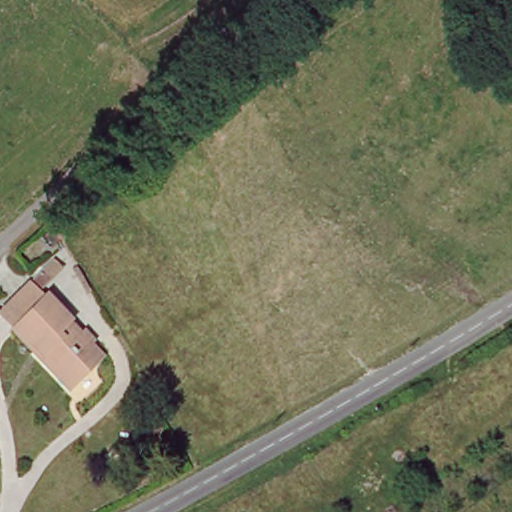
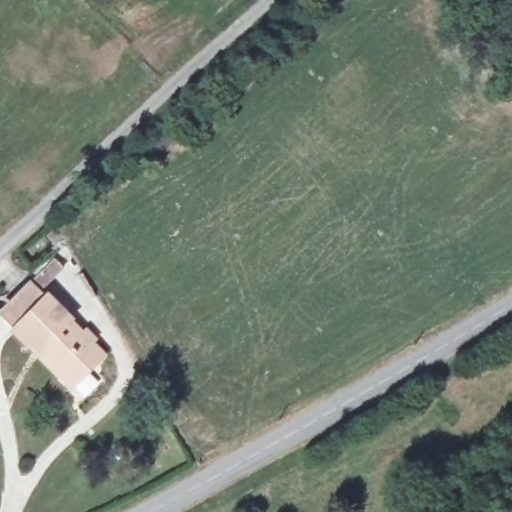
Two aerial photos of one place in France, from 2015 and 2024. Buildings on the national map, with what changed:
unchanged [(48,295),(70,318),(64,324),(96,358),(68,385),(28,344),(24,347),(10,332),(13,329),(0,312),(0,310),(8,303),(30,283),(43,299),(48,295)]

